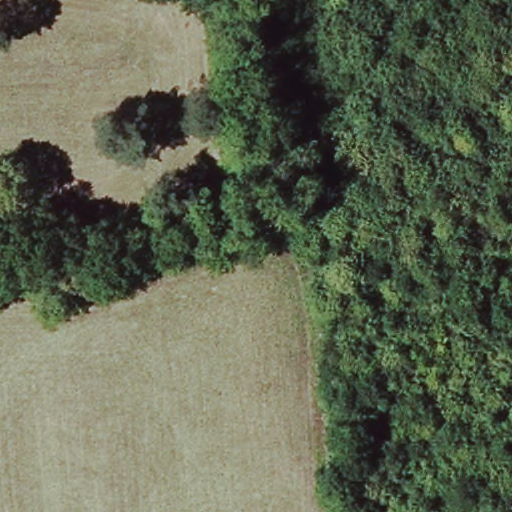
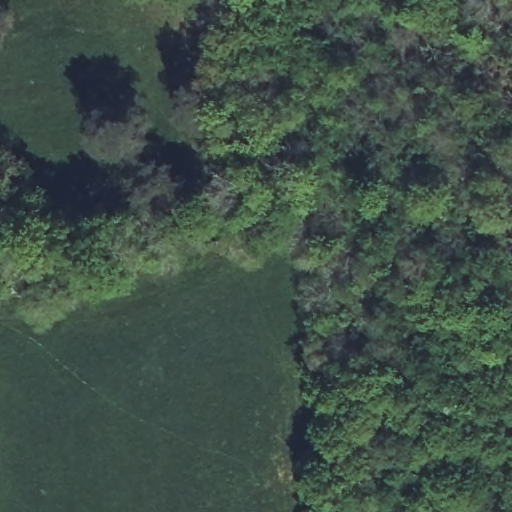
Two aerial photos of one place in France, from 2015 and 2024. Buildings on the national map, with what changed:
[]

